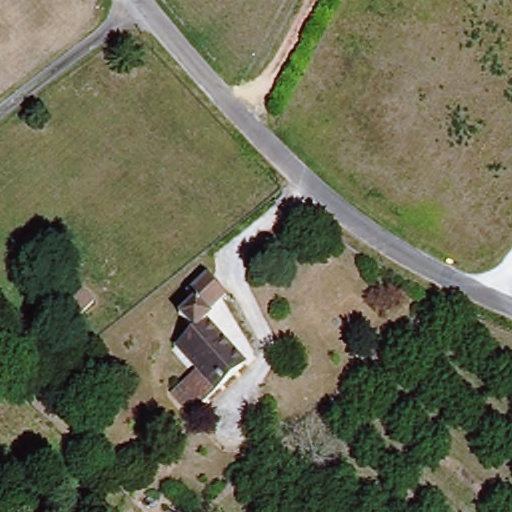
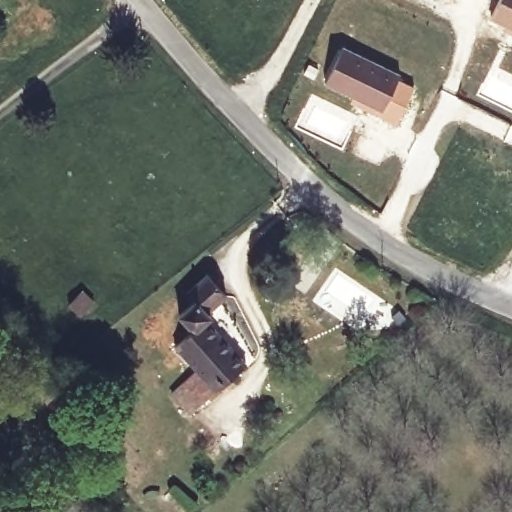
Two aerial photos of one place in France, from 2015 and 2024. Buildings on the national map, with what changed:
new [(496,0),(512,0),(512,31),(487,19),(496,0)]
new [(339,48),(398,76),(396,81),(412,89),(396,127),(378,118),(380,112),(323,85),(339,48)]
unchanged [(179,344),(197,327),(182,311),(198,296),(191,288),(209,273),(228,294),(211,310),(213,312),(209,315),(248,359),(193,410),(176,391),(201,368),(179,344)]
unchanged [(90,305),(81,313),(70,302),(80,293),(90,305)]

